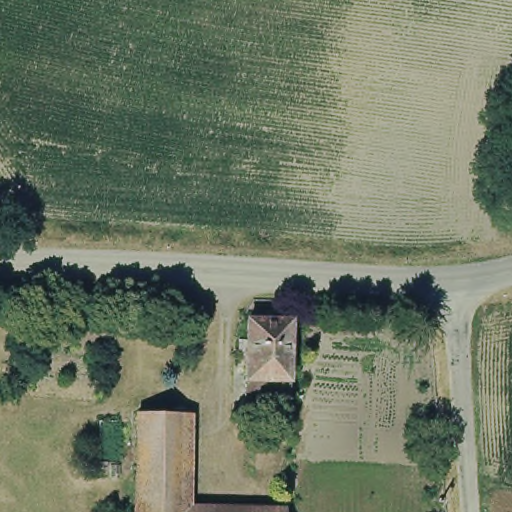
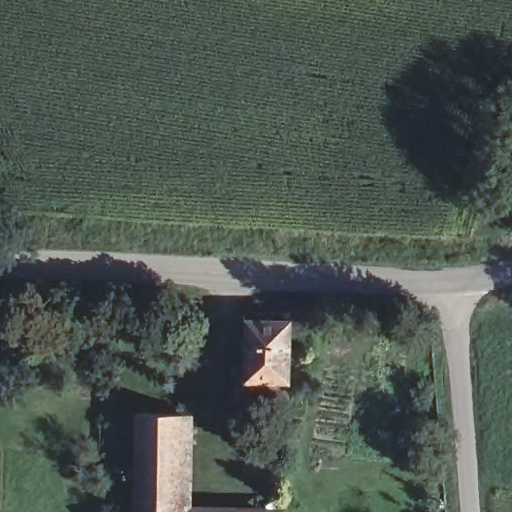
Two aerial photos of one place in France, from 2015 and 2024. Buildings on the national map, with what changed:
unchanged [(246,353),(246,351),(240,350),(240,335),(248,335),(248,313),(291,315),(289,353),(289,380),(280,379),(280,373),(246,373),(246,353)]
unchanged [(139,407),(148,408),(183,410),(182,512),(138,512),(138,455),(139,407)]

